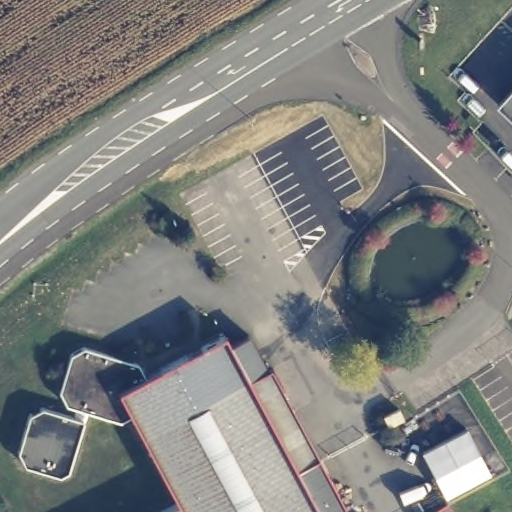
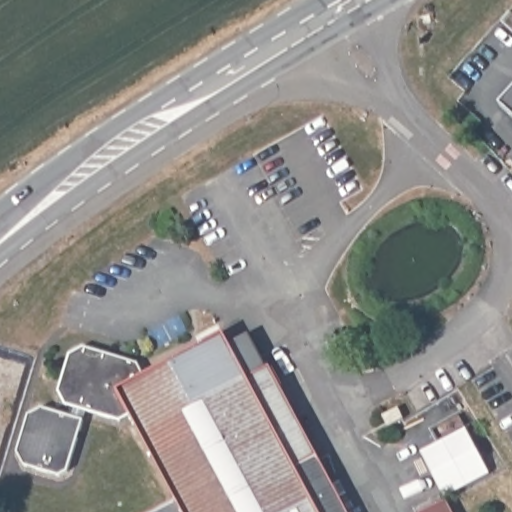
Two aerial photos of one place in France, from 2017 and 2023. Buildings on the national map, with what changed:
unchanged [(512,102),(512,120),(503,111),(512,102)]
unchanged [(137,420),(127,427),(73,409),(67,398),(77,359),(92,353),(144,368),(151,380),(228,339),(235,351),(254,341),(273,375),(276,373),(351,512),(171,512),(183,506),(137,420)]
unchanged [(19,450),(29,413),(43,406),(82,418),(69,471),(59,476),(26,465),(19,450)]
unchanged [(399,409),(404,418),(388,426),(384,417),(399,409)]
unchanged [(468,427),(492,474),(446,498),(422,450),(468,427)]
unchanged [(457,512),(429,512),(451,500),(457,512)]

